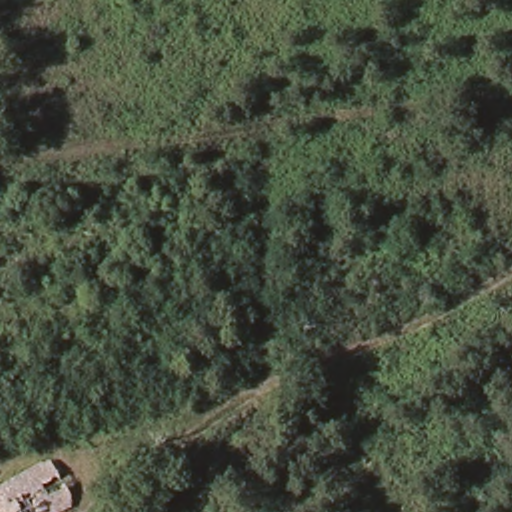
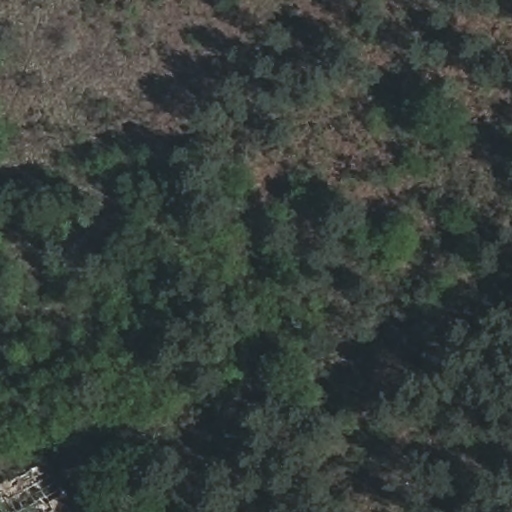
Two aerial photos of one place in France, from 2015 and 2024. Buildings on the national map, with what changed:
unchanged [(45,512),(4,512),(0,501),(0,493),(41,470),(63,503),(45,512)]

